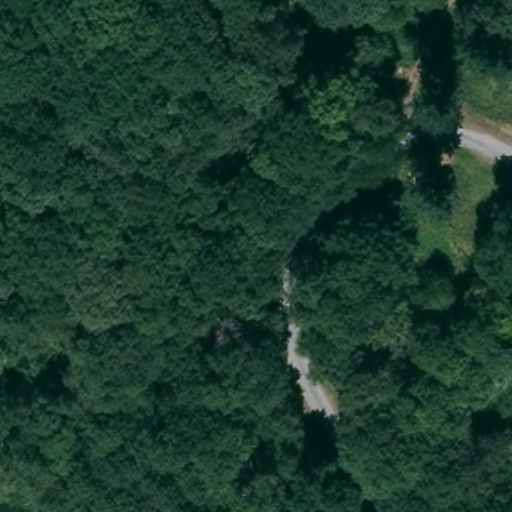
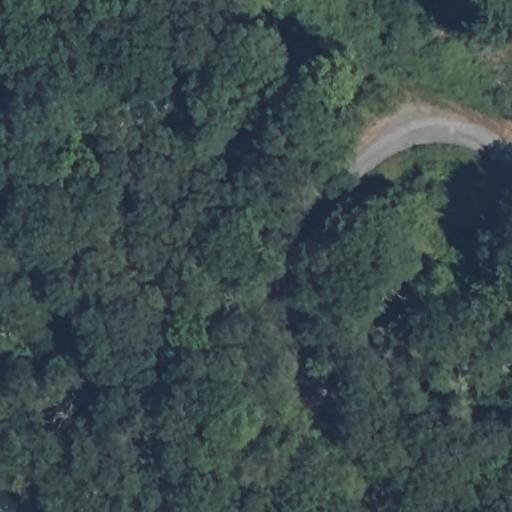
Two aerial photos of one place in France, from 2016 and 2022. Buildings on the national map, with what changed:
unchanged [(493,86),(512,57),(512,98),(493,86)]
unchanged [(455,231),(424,212),(451,169),(481,188),(455,231)]
unchanged [(446,327),(422,312),(441,281),(464,296),(446,327)]

